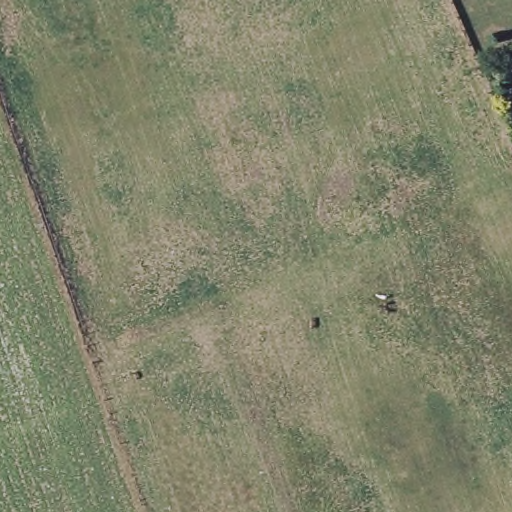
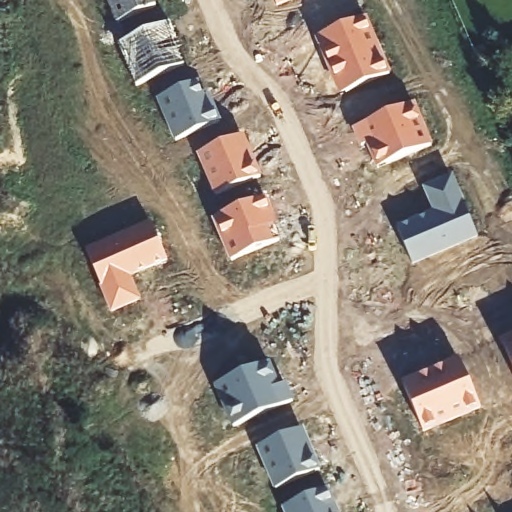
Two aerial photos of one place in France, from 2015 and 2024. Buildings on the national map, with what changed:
new [(154,5),(112,26),(102,0),(152,0),(154,5)]
new [(272,7),(269,0),(286,0),(272,7)]
new [(385,76),(335,97),(310,37),(362,16),(385,76)]
new [(130,87),(115,46),(170,22),(178,45),(175,46),(182,65),(130,87)]
new [(166,144),(150,101),(192,85),(196,97),(203,95),(215,126),(166,144)]
new [(429,142),(370,170),(360,146),(357,147),(348,127),(409,100),(429,142)]
new [(258,179),(211,201),(189,157),(238,136),(258,179)]
new [(402,268),(386,227),(427,212),(417,190),(447,177),(472,240),(402,268)]
new [(271,223),(270,224),(277,242),(226,264),(207,220),(260,197),(271,223)]
new [(126,275),(137,306),(107,319),(81,252),(147,224),(163,262),(126,275)]
new [(511,332),(512,334),(512,400),(490,340),(511,332)]
new [(420,437),(395,386),(453,358),(472,411),(420,437)]
new [(225,433),(207,389),(265,365),(274,388),(282,385),(290,405),(225,433)]
new [(270,493),(252,452),(300,431),(315,473),(270,493)]
new [(281,512),(325,492),(333,512),(281,512)]

